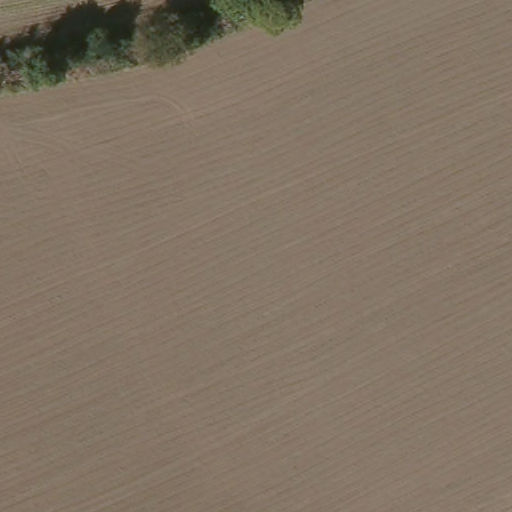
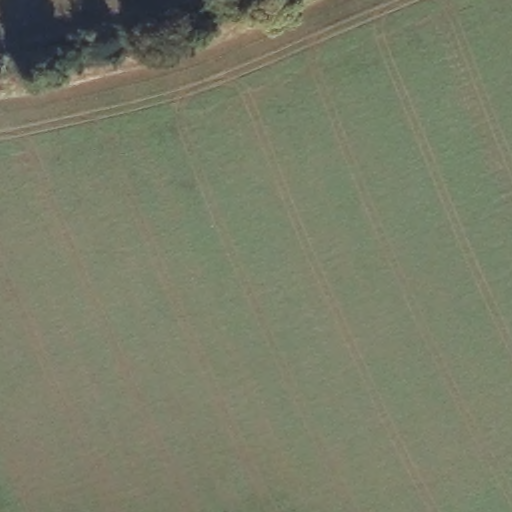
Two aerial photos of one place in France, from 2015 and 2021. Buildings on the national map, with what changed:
[]

